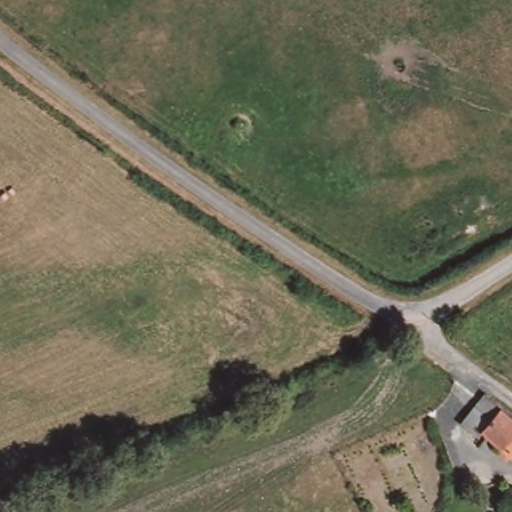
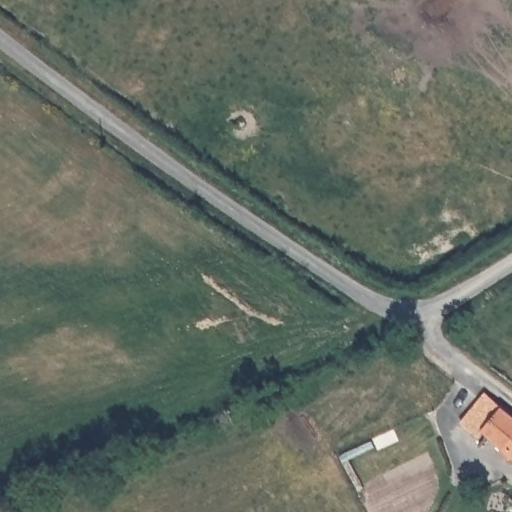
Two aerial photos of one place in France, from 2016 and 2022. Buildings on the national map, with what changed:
unchanged [(482,433),(480,438),(462,422),(484,392),(502,410),(512,419),(512,462),(497,451),(482,433)]

